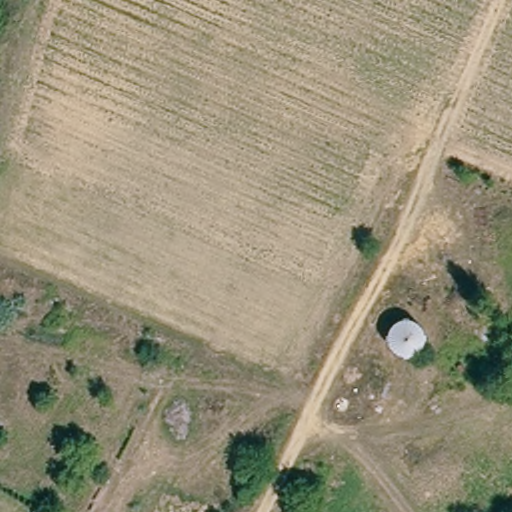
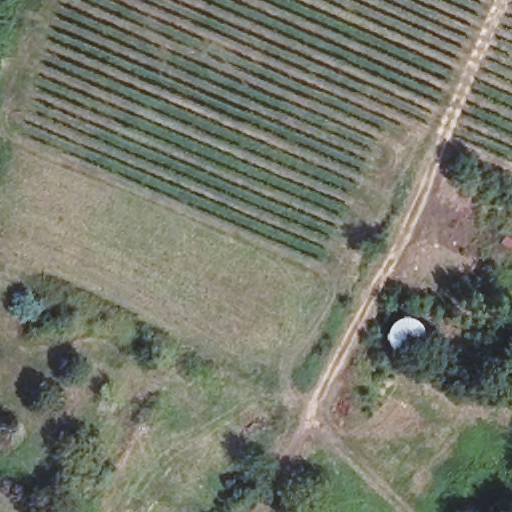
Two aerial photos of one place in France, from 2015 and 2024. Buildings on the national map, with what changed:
unchanged [(396,354),(390,337),(399,321),(417,321),(426,332),(426,342),(420,350),(409,356),(396,354)]

